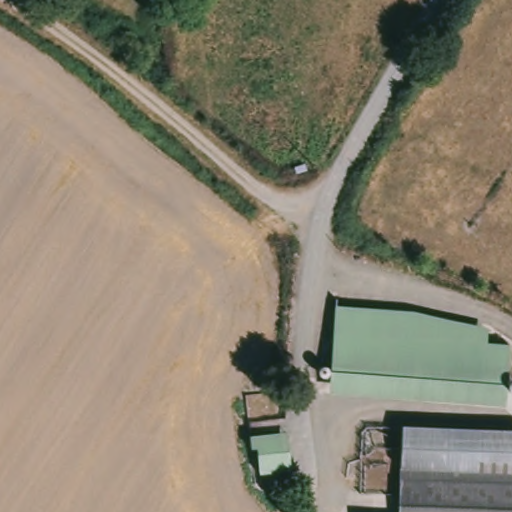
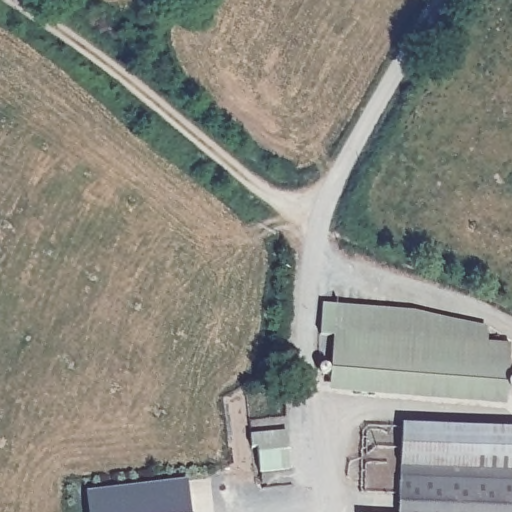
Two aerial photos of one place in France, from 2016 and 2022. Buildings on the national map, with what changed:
unchanged [(416,311),(489,327),(488,343),(512,345),(506,407),(329,392),(338,306),(416,311)]
unchanged [(512,429),(512,512),(396,512),(401,424),(512,429)]
unchanged [(290,473),(258,475),(256,451),(250,451),(249,437),(287,433),(290,473)]
new [(187,479),(190,512),(88,512),(85,492),(187,479)]

